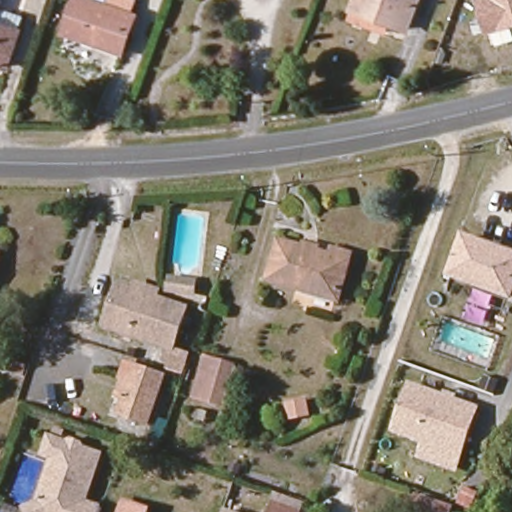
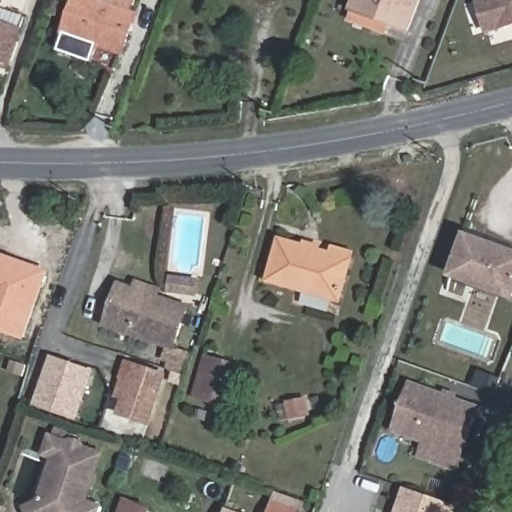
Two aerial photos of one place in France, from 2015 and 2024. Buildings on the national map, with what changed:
unchanged [(65,34),(78,0),(91,0),(134,14),(123,50),(65,34)]
unchanged [(351,12),(355,0),(418,0),(405,30),(351,12)]
unchanged [(476,0),(512,0),(512,26),(484,34),(476,0)]
unchanged [(25,19),(3,73),(0,71),(0,7),(25,19)]
unchanged [(455,267),(467,235),(503,250),(506,242),(512,244),(512,295),(510,300),(451,278),(455,267)]
unchanged [(270,284),(280,248),(318,260),(306,294),(270,284)]
new [(51,270),(25,340),(0,331),(0,252),(51,270)]
unchanged [(318,260),(333,265),(337,253),(354,259),(339,304),(306,294),(318,260)]
unchanged [(173,353),(105,331),(117,291),(134,297),(137,289),(157,295),(154,304),(186,315),(173,353)]
new [(32,406),(51,355),(94,370),(76,421),(32,406)]
unchanged [(231,369),(217,405),(197,398),(209,363),(231,369)]
unchanged [(162,381),(146,427),(121,419),(129,394),(119,391),(127,368),(162,381)]
unchanged [(444,393),(446,389),(460,394),(458,398),(480,406),(458,470),(417,459),(423,443),(396,433),(411,381),(444,393)]
unchanged [(22,504),(35,498),(51,454),(42,451),(48,433),(81,444),(98,450),(81,498),(98,504),(95,512),(26,512),(22,504)]
new [(459,512),(395,512),(403,487),(453,504),(460,484),(479,491),(473,510),(461,507),(459,512)]
demolished [(441,504),(439,512),(413,512),(415,497),(441,504)]
unchanged [(119,501),(143,509),(142,512),(115,512),(119,501)]
unchanged [(273,504),(297,512),(270,512),(273,504)]
unchanged [(224,510),(230,512),(223,512),(224,510)]

